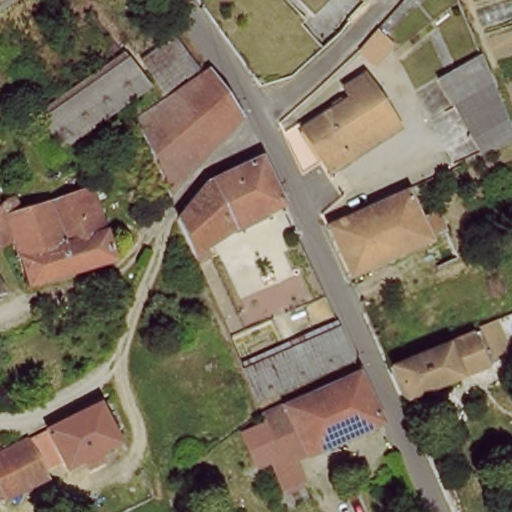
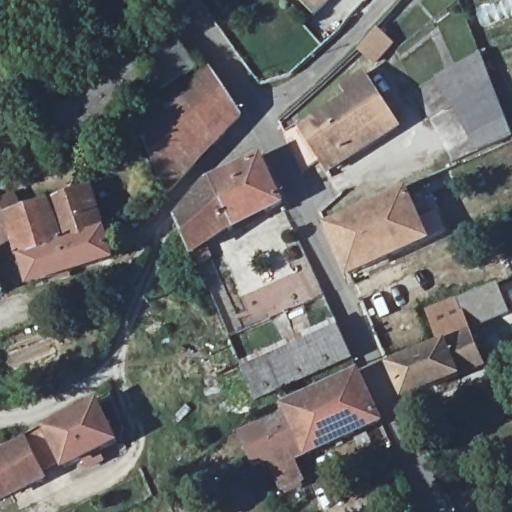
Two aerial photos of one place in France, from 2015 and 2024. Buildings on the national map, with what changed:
unchanged [(0,0),(2,0),(0,2),(0,0)]
demolished [(402,26),(389,14),(401,1),(402,0),(417,0),(422,5),(402,26)]
unchanged [(184,73),(182,70),(161,85),(141,59),(173,35),(194,65),(184,73)]
unchanged [(146,83),(60,146),(39,116),(125,55),(146,83)]
unchanged [(479,59),(509,136),(476,149),(444,71),(478,58),(479,59)]
unchanged [(138,125),(213,76),(240,110),(245,116),(225,138),(186,182),(171,197),(169,192),(138,125)]
unchanged [(373,84),(393,128),(344,151),(349,163),(324,174),(304,128),(358,103),(354,92),(373,84)]
unchanged [(225,225),(219,228),(188,249),(174,221),(173,218),(194,191),(205,178),(256,151),(278,197),(278,199),(225,225)]
unchanged [(91,181),(113,251),(70,265),(48,196),(91,181)]
unchanged [(10,196),(14,209),(10,209),(19,241),(0,247),(0,192),(7,187),(10,196)]
unchanged [(348,273),(326,227),(354,215),(402,194),(415,220),(436,212),(447,235),(350,278),(348,273)]
unchanged [(48,196),(70,265),(29,280),(23,255),(19,241),(10,209),(14,209),(48,196)]
unchanged [(0,290),(0,275),(4,289),(0,290)]
new [(437,345),(424,309),(499,282),(512,317),(495,324),(437,345)]
unchanged [(332,320),(334,326),(346,352),(253,396),(238,364),(332,320)]
unchanged [(507,354),(483,364),(484,368),(403,400),(403,399),(399,393),(389,369),(388,365),(437,345),(495,324),(507,354)]
unchanged [(273,468),(284,462),(264,415),(276,410),(357,371),(368,394),(379,421),(294,459),(304,481),(283,490),(278,480),(273,468)]
unchanged [(113,444),(62,470),(48,430),(49,429),(63,421),(97,404),(113,444)]
unchanged [(0,502),(0,500),(0,454),(14,447),(28,440),(43,481),(0,502)]

